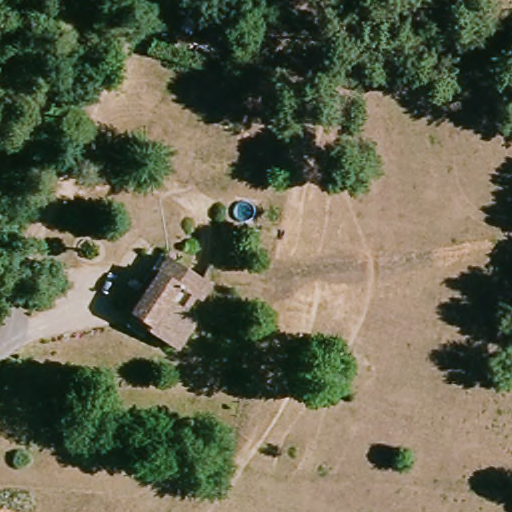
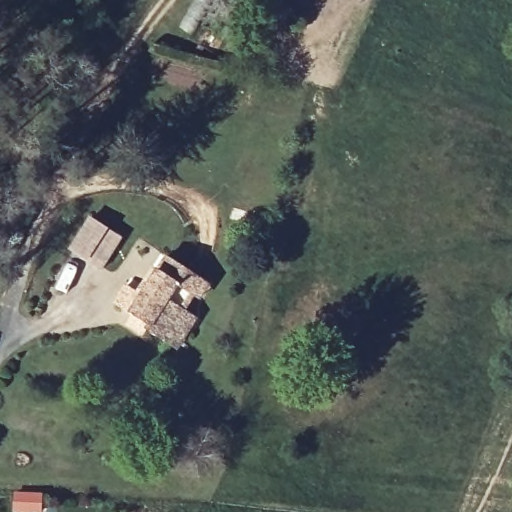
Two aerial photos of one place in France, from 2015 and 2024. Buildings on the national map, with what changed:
new [(70,250),(90,217),(123,239),(102,270),(70,250)]
unchanged [(141,338),(147,330),(129,318),(156,275),(172,286),(181,272),(204,286),(210,290),(201,305),(195,300),(185,316),(190,320),(198,325),(178,355),(171,350),(160,343),(157,349),(141,338)]

